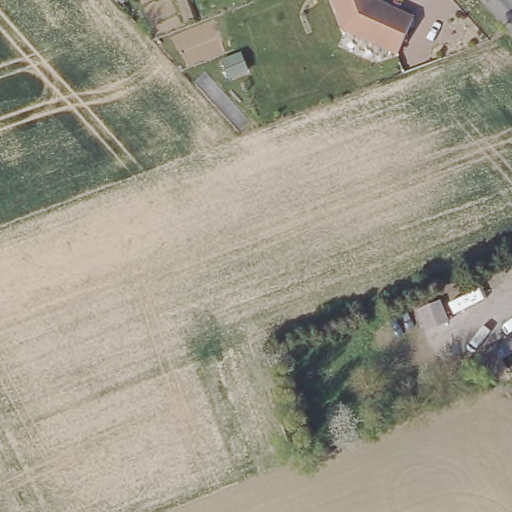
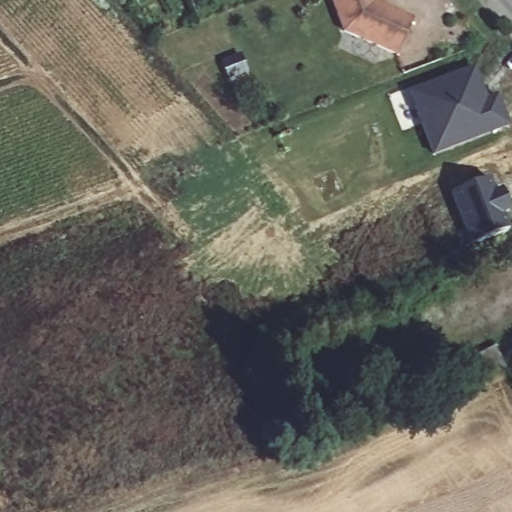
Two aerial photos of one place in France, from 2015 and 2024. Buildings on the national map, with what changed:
unchanged [(412,17),(396,54),(343,30),(331,0),(373,0),(412,17)]
new [(512,124),(512,126),(435,155),(410,92),(478,65),(489,97),(500,93),(512,124)]
new [(468,244),(448,191),(490,175),(495,190),(502,187),(510,212),(503,215),(510,227),(468,244)]

